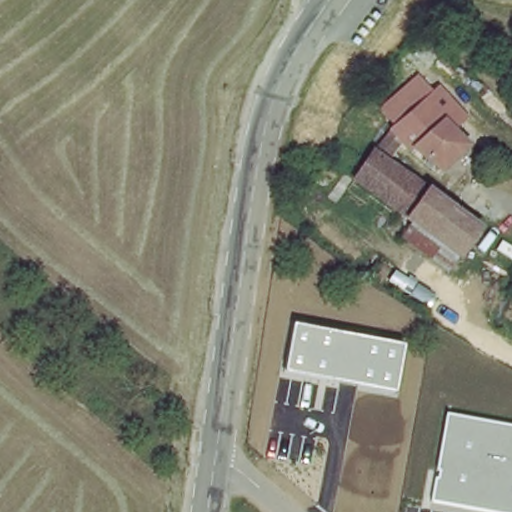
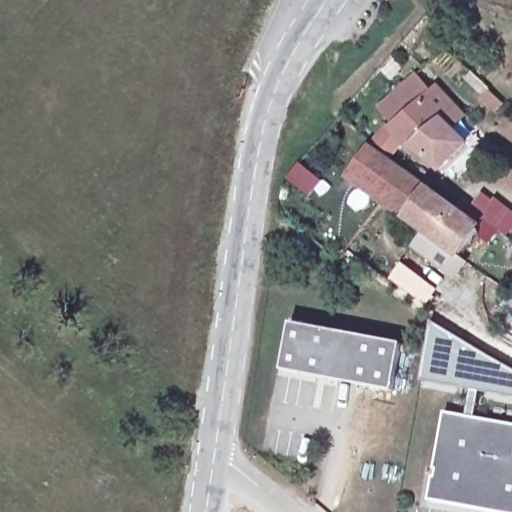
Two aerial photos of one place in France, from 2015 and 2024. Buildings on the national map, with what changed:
unchanged [(460,116),(447,130),(464,146),(439,172),(400,139),(385,156),(377,147),(405,116),(395,106),(417,84),(428,95),(434,90),(460,116)]
unchanged [(400,239),(410,226),(352,181),(373,152),(477,230),(455,259),(445,273),(400,239)]
new [(401,262),(437,288),(425,305),(390,279),(401,262)]
new [(431,321),(512,367),(512,397),(475,391),(420,380),(431,321)]
unchanged [(405,345),(397,391),(284,372),(293,325),(405,345)]
unchanged [(485,512),(430,502),(447,413),(512,425),(512,512),(485,512)]

